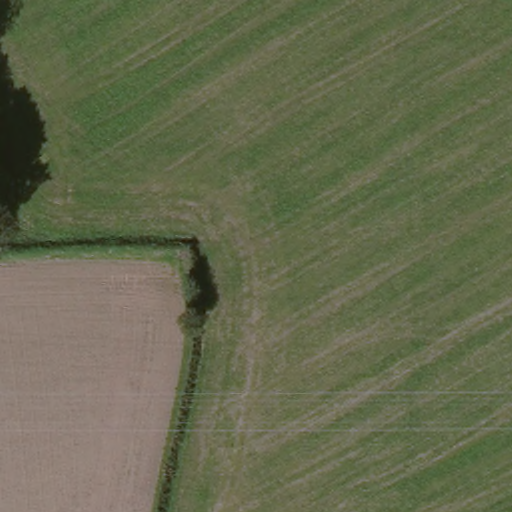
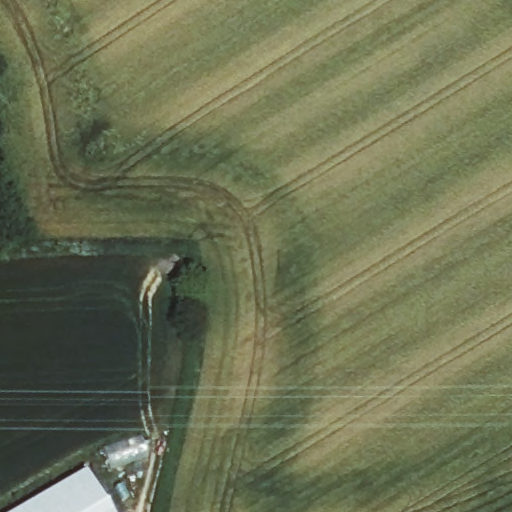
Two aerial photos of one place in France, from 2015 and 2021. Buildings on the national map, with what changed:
new [(110,512),(10,512),(84,470),(110,512)]

